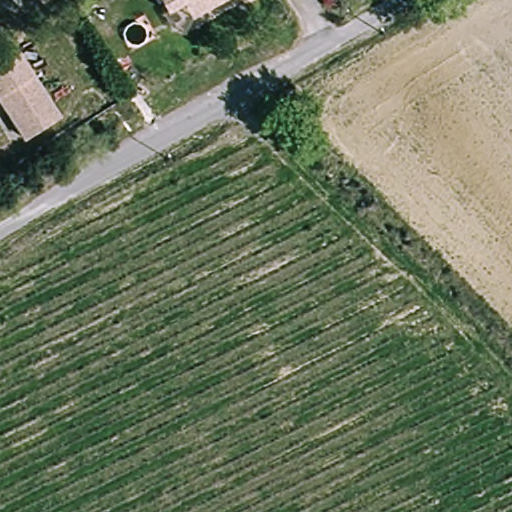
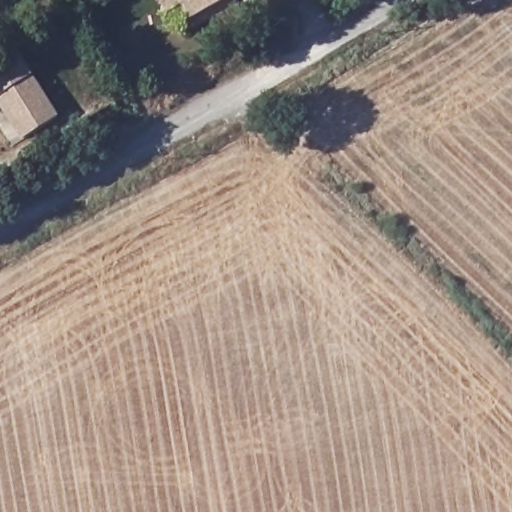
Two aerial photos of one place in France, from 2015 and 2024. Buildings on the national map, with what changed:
unchanged [(182,3),(167,11),(161,0),(223,0),(212,6),(190,18),(182,3)]
unchanged [(27,139),(0,101),(0,67),(17,55),(60,117),(27,139)]

